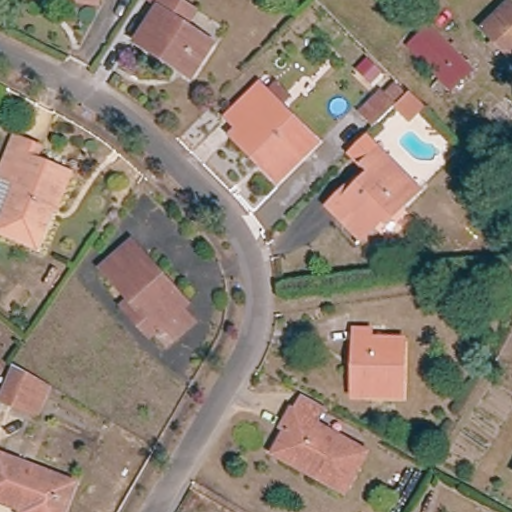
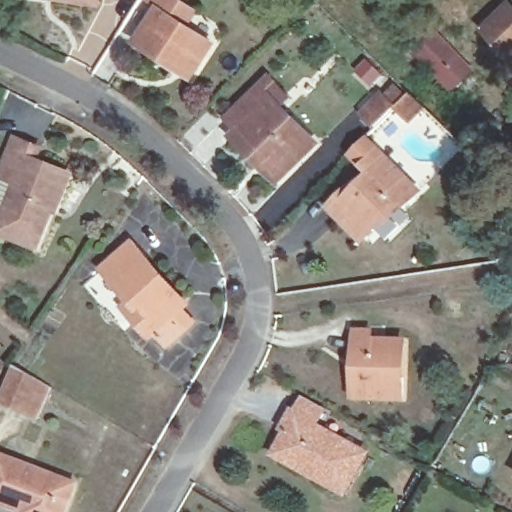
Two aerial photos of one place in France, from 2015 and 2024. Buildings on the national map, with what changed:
unchanged [(70,0),(101,0),(100,4),(70,0)]
unchanged [(139,40),(161,4),(154,0),(180,0),(185,3),(198,12),(189,25),(215,43),(197,70),(194,75),(171,61),(139,40)]
unchanged [(490,39),(480,29),(506,4),(512,9),(512,61),(498,48),(494,53),(485,44),(490,39)]
unchanged [(468,67),(438,98),(427,86),(434,80),(414,59),(416,57),(405,45),(425,24),(468,67)]
unchanged [(243,129),(232,118),(263,87),(271,94),(280,84),(294,98),(284,108),(318,141),(281,179),(263,161),(237,135),(243,129)]
unchanged [(391,110),(406,96),(421,110),(406,125),(391,110)]
unchanged [(372,130),(359,117),(378,97),(391,110),(388,114),(372,130)]
unchanged [(34,250),(0,237),(0,225),(16,186),(0,179),(0,178),(13,143),(36,152),(32,165),(63,177),(49,210),(42,229),(34,250)]
unchanged [(390,210),(365,235),(343,214),(332,203),(358,177),(364,183),(375,171),(367,164),(381,150),(421,189),(405,205),(395,215),(390,210)]
unchanged [(128,307),(135,301),(105,268),(134,241),(189,301),(184,304),(196,319),(170,342),(157,329),(152,333),(128,307)]
unchanged [(353,393),(354,331),(368,331),(368,339),(396,339),(402,339),(401,375),(399,396),(353,393)]
unchanged [(24,410),(0,400),(0,388),(11,363),(38,378),(48,384),(35,414),(24,410)]
unchanged [(276,456),(287,435),(283,432),(292,416),(302,399),(322,410),(312,427),(364,455),(344,492),(312,476),(295,467),(276,456)]
unchanged [(81,483),(70,512),(30,512),(31,509),(0,497),(0,465),(4,452),(48,470),(81,483)]

